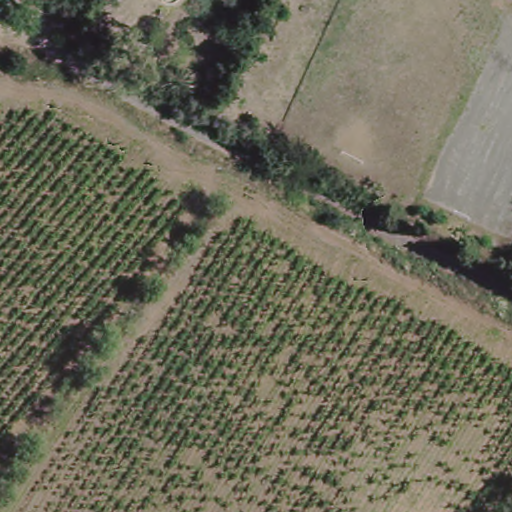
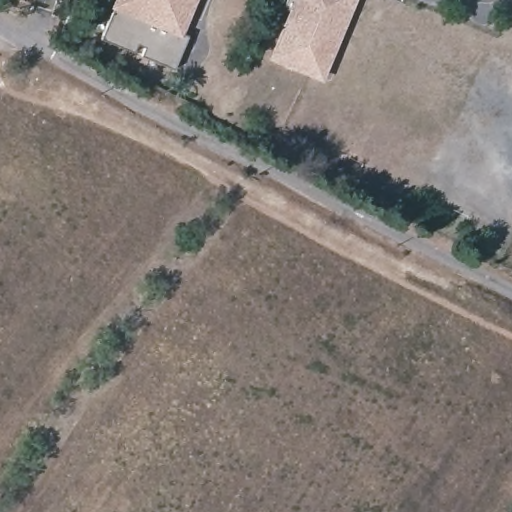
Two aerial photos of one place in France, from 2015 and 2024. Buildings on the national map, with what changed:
new [(106,6),(109,0),(190,0),(178,32),(183,34),(172,65),(99,37),(111,8),(106,6)]
new [(351,0),(319,78),(266,56),(288,0),(351,0)]

